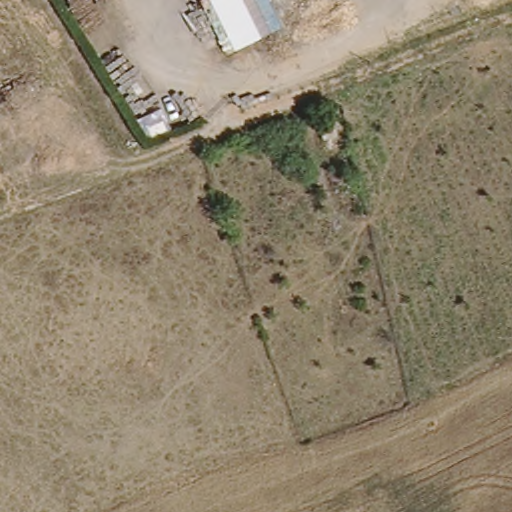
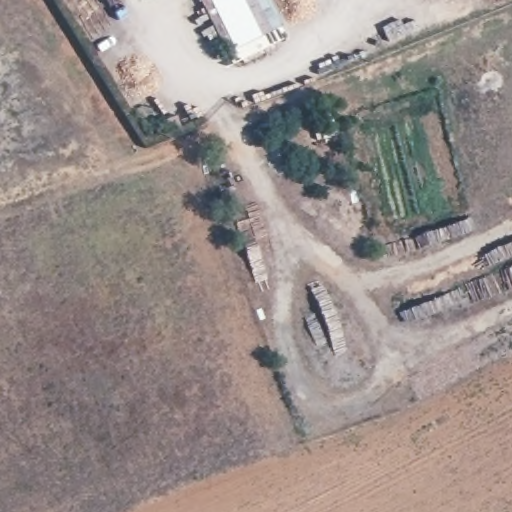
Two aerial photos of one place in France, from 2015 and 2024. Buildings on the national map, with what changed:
unchanged [(210,0),(269,0),(281,27),(235,50),(210,0)]
unchanged [(320,124),(338,120),(342,135),(324,140),(320,124)]

